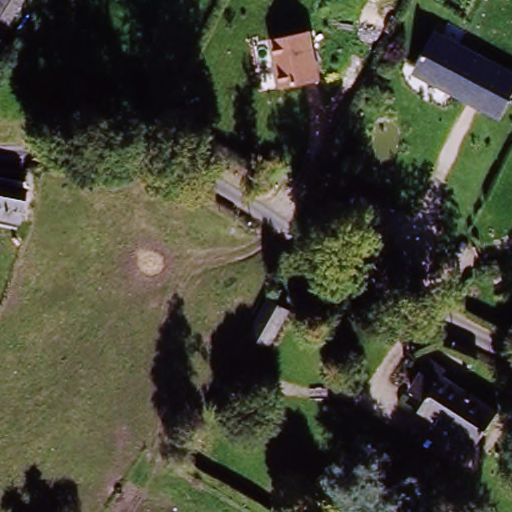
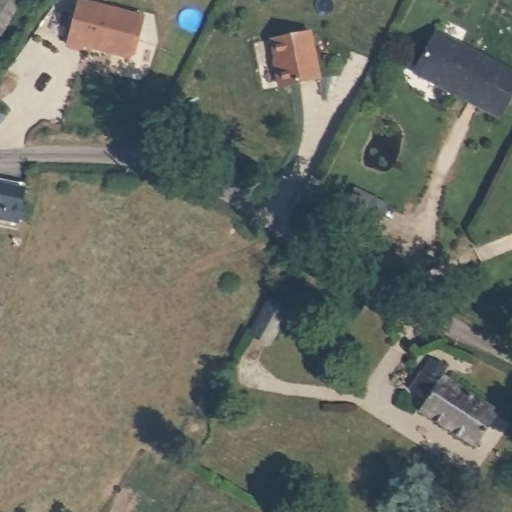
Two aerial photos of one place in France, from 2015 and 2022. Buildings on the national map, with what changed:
unchanged [(5,35),(0,33),(0,0),(19,0),(5,35)]
new [(145,15),(135,55),(128,59),(84,47),(83,50),(66,46),(78,0),(82,0),(145,15)]
unchanged [(320,83),(275,87),(270,35),(311,30),(320,83)]
unchanged [(512,72),(512,95),(501,117),(413,72),(439,34),(512,72)]
unchanged [(0,224),(0,173),(32,179),(18,229),(0,224)]
unchanged [(270,303),(285,315),(266,344),(250,332),(270,303)]
unchanged [(428,358),(450,373),(443,386),(475,405),(457,437),(402,403),(428,358)]

